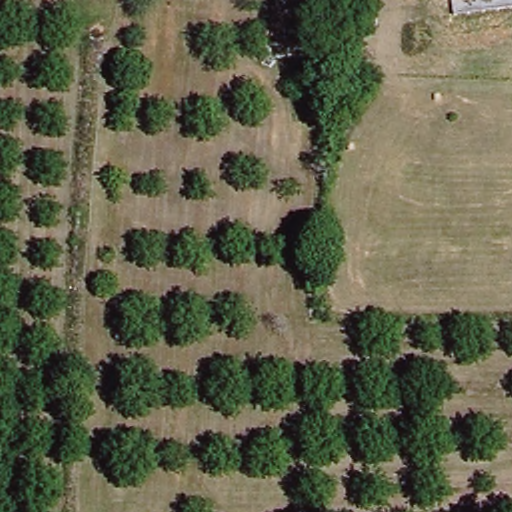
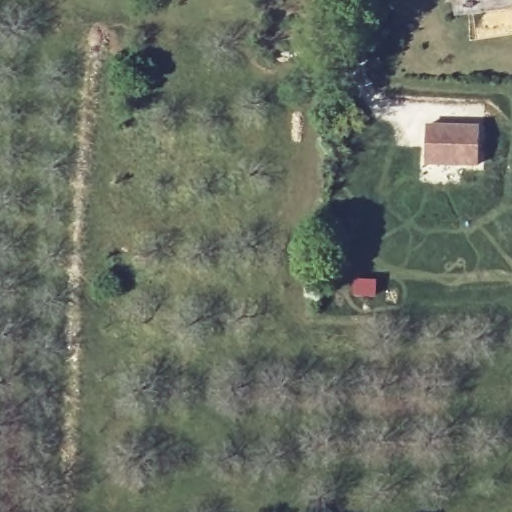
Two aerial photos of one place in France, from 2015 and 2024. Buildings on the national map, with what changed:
new [(478,166),(426,165),(426,124),(480,126),(478,166)]

